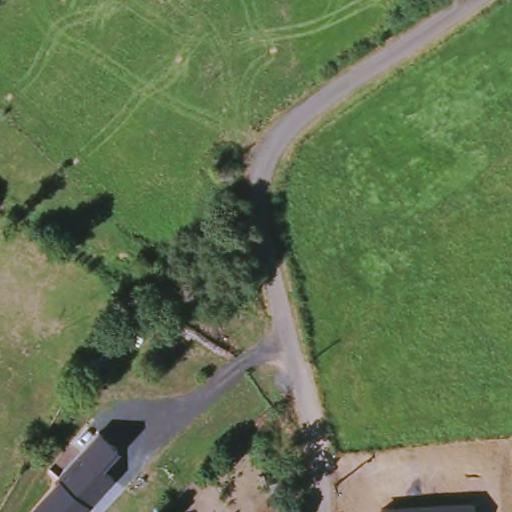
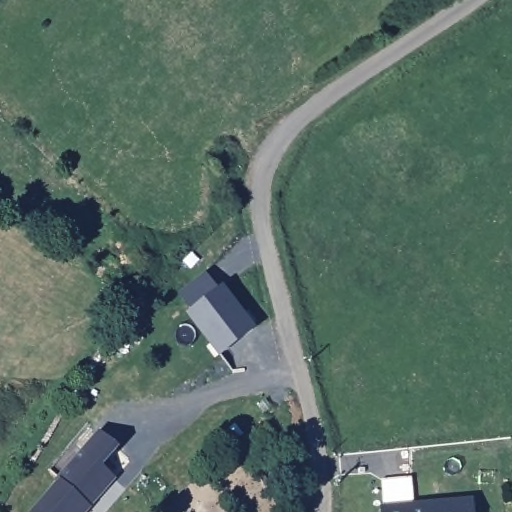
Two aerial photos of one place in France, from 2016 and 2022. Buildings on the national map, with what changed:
new [(188,313),(192,309),(180,293),(204,276),(216,291),(220,287),(252,327),(219,353),(188,313)]
unchanged [(99,467),(113,479),(85,512),(35,512),(57,486),(59,483),(57,482),(97,433),(115,448),(99,467)]
unchanged [(473,512),(380,512),(380,507),(472,502),(473,512)]

